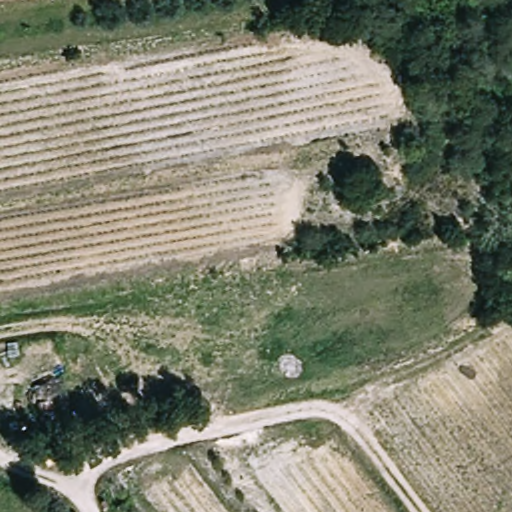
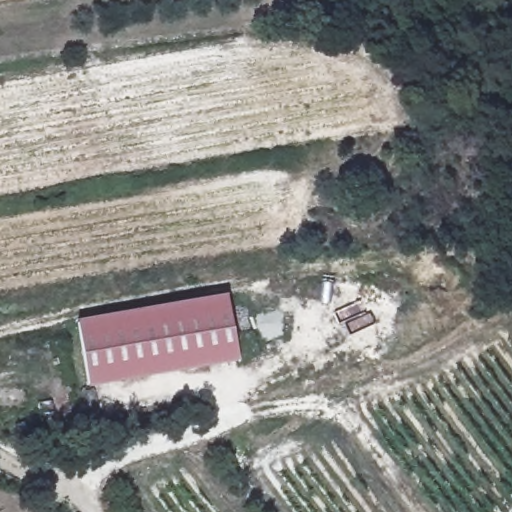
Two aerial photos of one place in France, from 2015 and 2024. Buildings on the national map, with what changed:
new [(223,298),(232,362),(81,382),(73,318),(223,298)]

